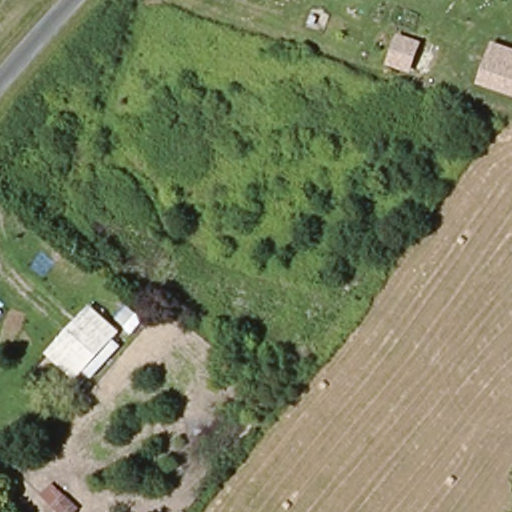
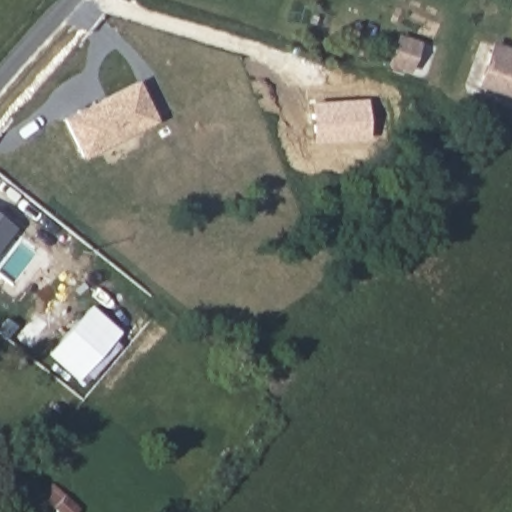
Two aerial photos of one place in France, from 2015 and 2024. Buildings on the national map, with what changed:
unchanged [(410,74),(384,66),(396,32),(423,42),(410,74)]
unchanged [(476,86),(491,41),(512,48),(512,97),(476,86)]
new [(156,121),(86,155),(68,118),(138,85),(156,121)]
new [(369,140),(312,143),(309,102),(367,99),(369,140)]
new [(0,249),(0,218),(15,231),(0,249)]
unchanged [(91,309),(118,334),(113,339),(121,345),(92,375),(86,369),(80,376),(53,350),(91,309)]

